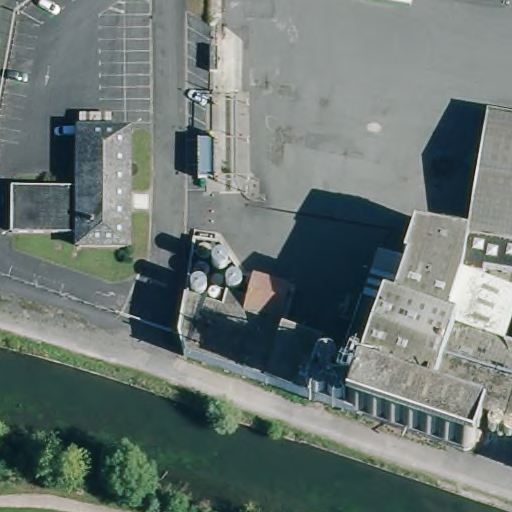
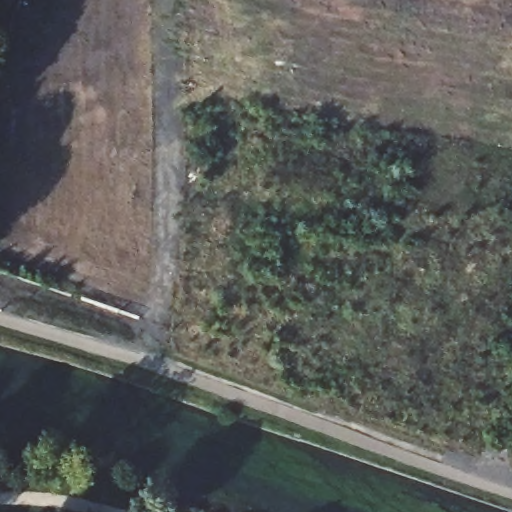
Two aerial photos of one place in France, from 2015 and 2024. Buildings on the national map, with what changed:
demolished [(489,111),(512,115),(512,239),(499,237),(465,232),(466,230),(472,199),(489,111)]
demolished [(77,189),(77,127),(128,128),(127,244),(77,244),(77,231),(77,189)]
demolished [(197,175),(197,136),(198,136),(213,136),(213,160),(214,175),(197,175)]
demolished [(9,230),(9,189),(77,189),(77,231),(9,230)]
demolished [(406,260),(399,257),(410,221),(466,230),(465,232),(460,264),(442,318),(392,302),(406,260)]
demolished [(482,268),(460,264),(465,232),(499,237),(512,239),(512,266),(483,261),(482,268)]
demolished [(223,300),(229,277),(266,287),(257,320),(240,315),(243,305),(223,300)]
demolished [(349,288),(352,288),(362,292),(392,302),(442,318),(501,337),(512,362),(512,377),(500,415),(482,409),(472,441),(462,445),(326,399),(342,350),(330,346),(349,288)]

